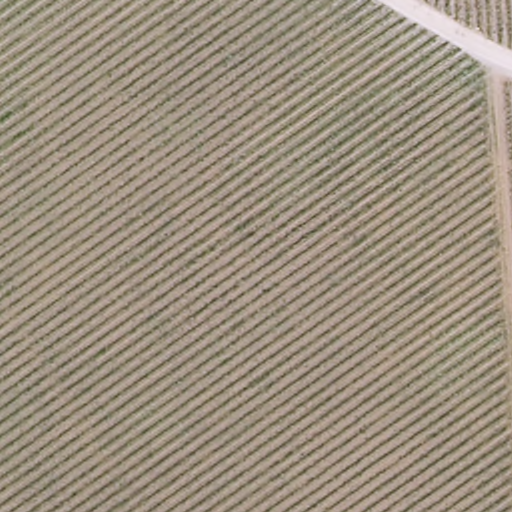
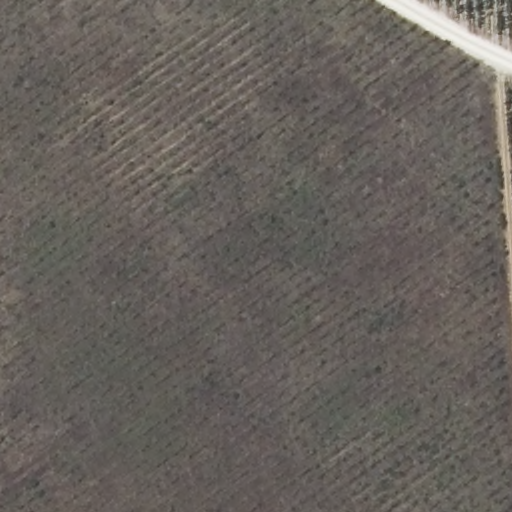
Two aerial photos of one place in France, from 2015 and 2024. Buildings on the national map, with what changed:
[]

